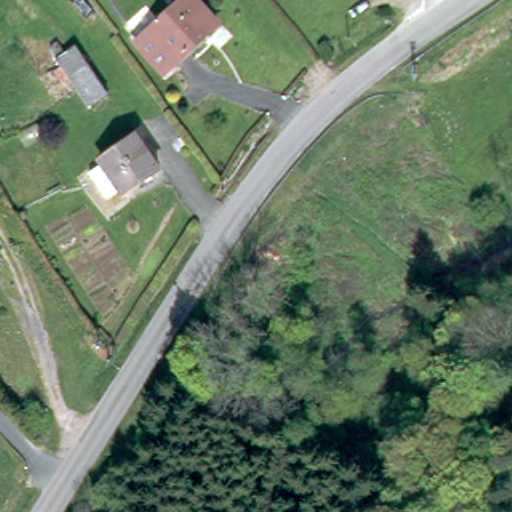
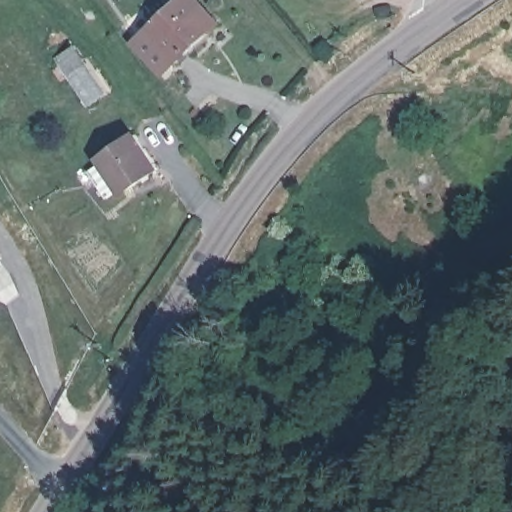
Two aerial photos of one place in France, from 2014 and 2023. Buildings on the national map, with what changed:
unchanged [(224,24),(181,58),(176,52),(166,60),(147,37),(159,27),(157,24),(187,0),(208,0),(224,24)]
unchanged [(97,104),(78,73),(97,61),(117,92),(97,104)]
unchanged [(114,154),(142,133),(165,164),(132,185),(130,182),(120,189),(103,165),(115,157),(114,154)]
unchanged [(0,252),(2,254),(0,256),(0,252)]

